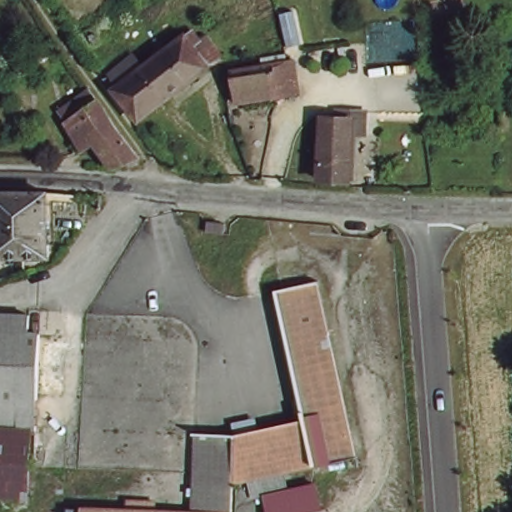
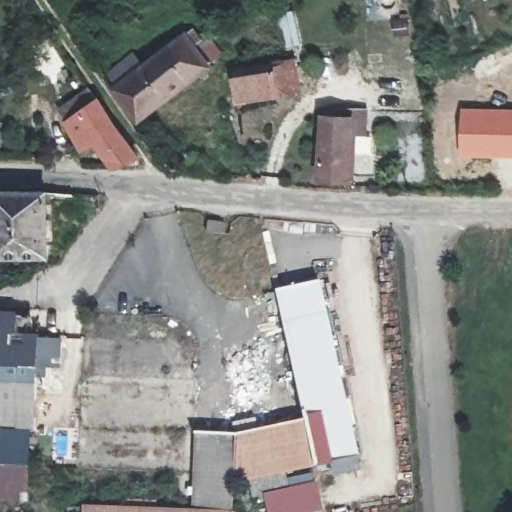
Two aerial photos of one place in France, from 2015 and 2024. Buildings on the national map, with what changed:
unchanged [(138,61),(145,72),(198,39),(204,48),(199,52),(212,73),(137,124),(116,94),(120,90),(112,78),(138,61)]
unchanged [(241,103),(235,72),(288,61),(295,93),(241,103)]
unchanged [(96,96),(138,166),(115,178),(99,153),(89,158),(69,125),(70,124),(64,114),(96,96)]
new [(460,107),(512,108),(512,158),(459,156),(460,107)]
unchanged [(371,139),(353,139),(352,185),(328,186),(327,124),(340,123),(340,118),(370,118),(371,139)]
unchanged [(0,262),(0,197),(50,197),(47,264),(0,262)]
unchanged [(203,224),(218,225),(217,236),(204,235),(203,224)]
unchanged [(82,510),(87,510),(141,512),(141,500),(167,501),(167,511),(206,512),(207,438),(302,425),(277,298),(321,289),(355,460),(246,482),(245,512),(81,512),(82,510)]
unchanged [(0,332),(1,332),(2,312),(30,313),(30,331),(44,332),(38,431),(34,430),(0,429),(0,332)]
unchanged [(0,488),(0,429),(34,430),(31,489),(0,488)]
demolished [(267,485),(265,512),(250,512),(252,484),(267,485)]
unchanged [(274,495),(305,490),(308,505),(277,510),(274,495)]

